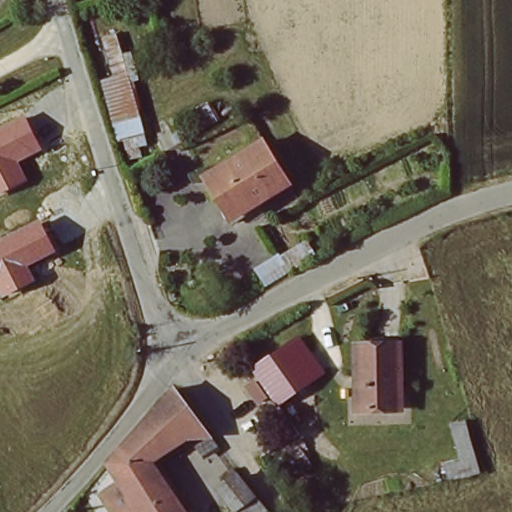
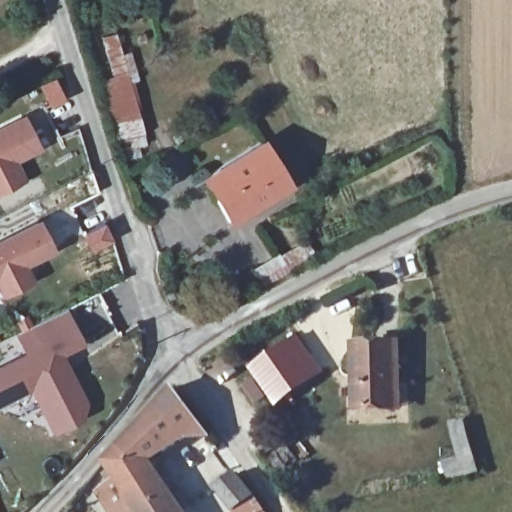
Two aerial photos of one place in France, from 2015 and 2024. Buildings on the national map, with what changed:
unchanged [(99,61),(129,54),(148,143),(123,151),(99,61)]
unchanged [(43,150),(18,163),(28,180),(0,194),(0,126),(24,113),(43,150)]
unchanged [(237,189),(221,168),(256,145),(284,182),(249,206),(237,189)]
unchanged [(237,189),(249,206),(231,218),(203,180),(221,168),(237,189)]
unchanged [(56,250),(27,266),(35,281),(2,296),(0,293),(0,240),(40,220),(56,250)]
unchanged [(309,237),(319,253),(265,286),(256,268),(309,237)]
new [(59,299),(75,332),(54,343),(66,368),(81,393),(76,408),(51,421),(26,378),(0,391),(0,354),(35,336),(25,316),(59,299)]
unchanged [(279,406),(250,366),(298,332),(324,370),(279,406)]
unchanged [(390,410),(358,411),(356,347),(399,345),(401,388),(401,410),(390,410)]
unchanged [(179,433),(153,460),(164,479),(186,512),(117,512),(103,487),(114,477),(106,461),(115,450),(130,432),(151,408),(161,395),(170,387),(188,408),(203,428),(204,430),(179,433)]
unchanged [(234,469),(267,512),(228,512),(231,509),(213,488),(234,469)]

